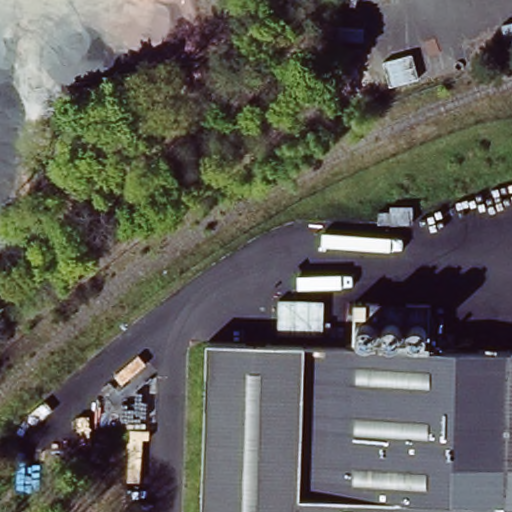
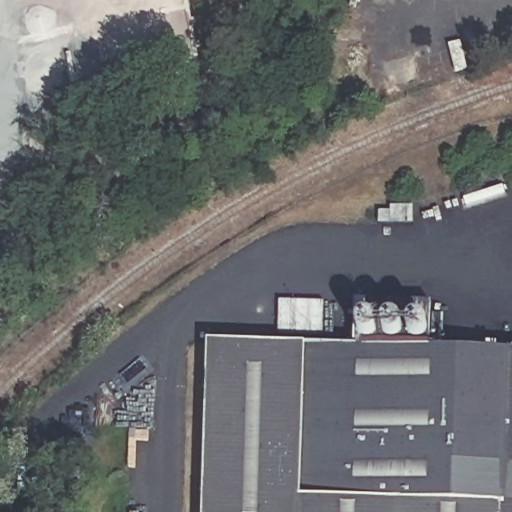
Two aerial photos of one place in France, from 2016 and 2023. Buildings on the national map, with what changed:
unchanged [(409,226),(390,225),(391,210),(409,210),(409,226)]
unchanged [(326,305),(324,344),(278,342),(280,304),(326,305)]
unchanged [(359,351),(360,308),(437,308),(436,354),(512,356),(512,512),(205,512),(211,348),(359,351)]

